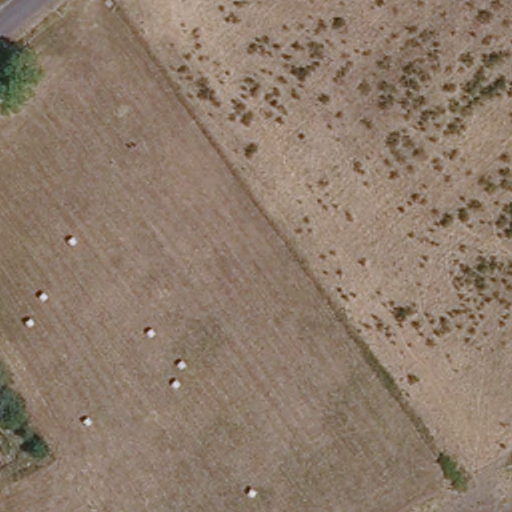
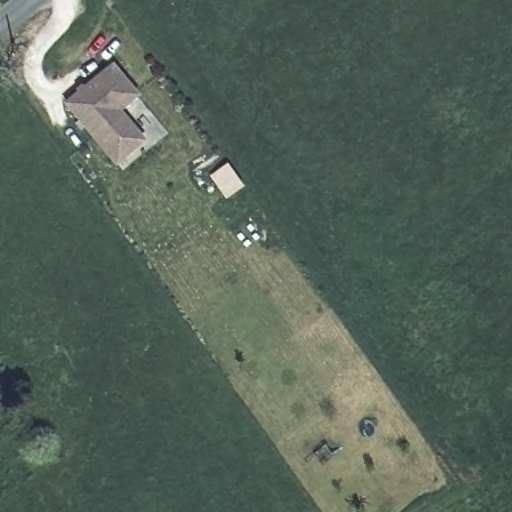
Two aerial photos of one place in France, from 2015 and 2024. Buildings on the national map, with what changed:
new [(140,95),(122,109),(146,139),(115,165),(65,104),(114,64),(140,95)]

